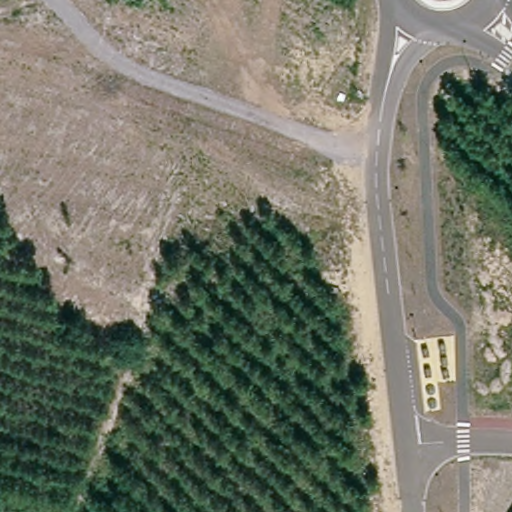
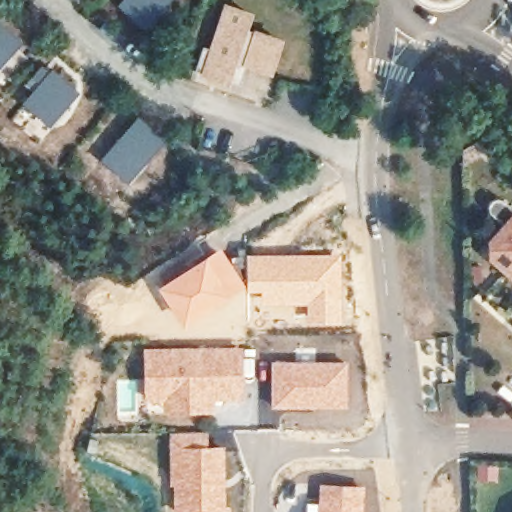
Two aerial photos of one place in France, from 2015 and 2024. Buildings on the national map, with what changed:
new [(146,25),(137,17),(121,3),(124,0),(166,0),(162,4),(164,5),(146,25)]
new [(213,47),(222,23),(206,17),(212,0),(215,0),(229,5),(229,3),(252,12),(247,27),(282,38),(272,70),(249,62),(245,75),(232,70),(229,79),(197,69),(205,44),(213,47)]
new [(0,64),(0,18),(22,38),(9,52),(10,53),(0,64)]
new [(50,124),(41,116),(25,103),(55,67),(79,88),(67,102),(67,103),(50,124)]
new [(128,181),(119,173),(104,159),(142,115),(166,135),(145,159),(146,160),(128,181)]
new [(487,198),(491,198),(496,200),(512,214),(512,272),(503,264),(498,269),(488,259),(493,253),(482,243),(497,226),(482,212),(481,206),(483,201),(487,198)]
new [(232,295),(184,327),(157,288),(206,257),(221,247),(246,287),(232,295)]
new [(261,305),(261,292),(248,292),(247,263),(257,263),(257,255),(341,254),(342,324),(309,324),(308,305),(261,305)]
new [(512,274),(512,280),(509,278),(512,274)]
new [(164,402),(146,402),(145,349),(244,348),(245,401),(215,401),(216,413),(166,414),(164,402)]
new [(348,408),(272,408),(276,365),(325,365),(325,362),(349,362),(348,408)]
new [(227,512),(170,512),(170,467),(175,467),(174,433),(209,432),(209,446),(226,446),(227,512)]
new [(366,488),(365,512),(318,512),(320,486),(366,488)]

